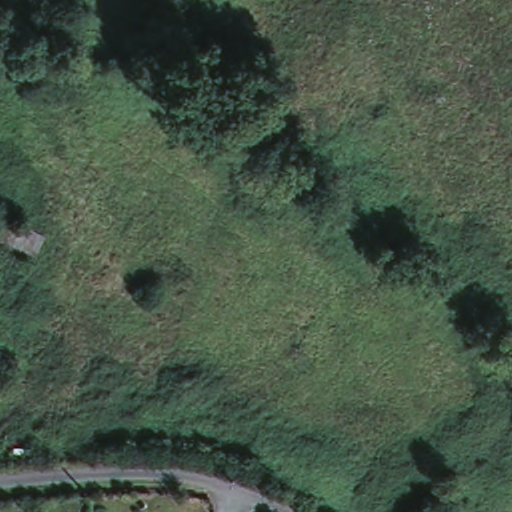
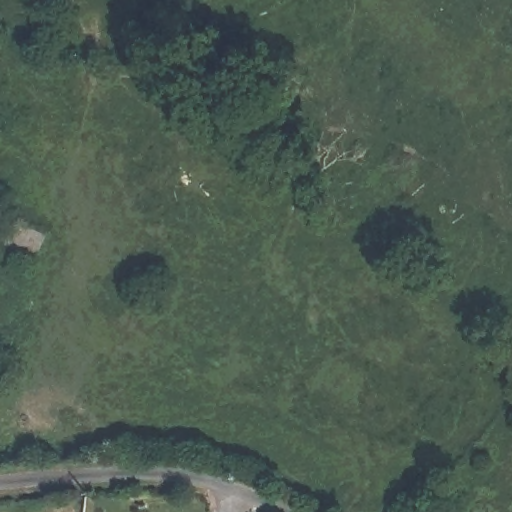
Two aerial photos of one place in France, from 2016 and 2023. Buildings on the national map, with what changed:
unchanged [(43,236),(34,262),(0,251),(0,229),(5,219),(43,236)]

